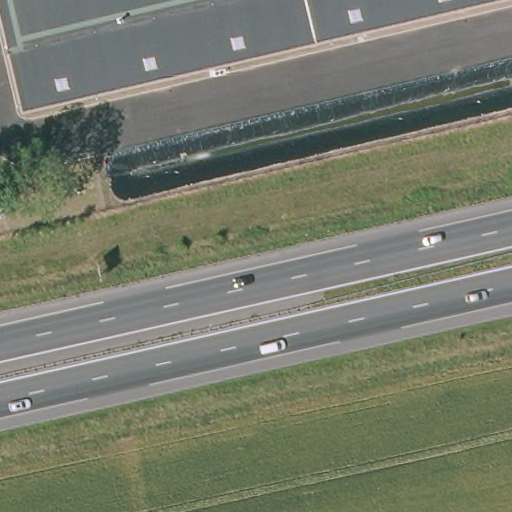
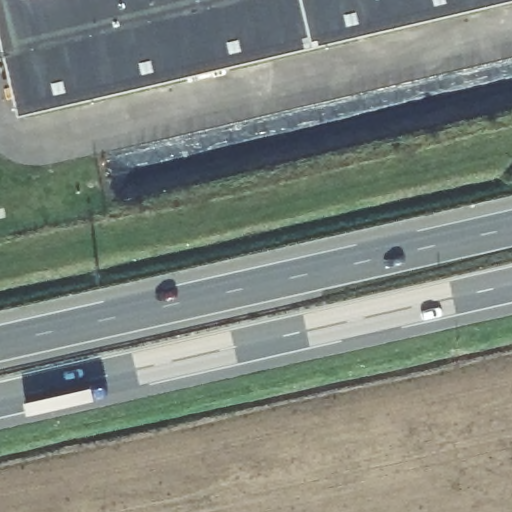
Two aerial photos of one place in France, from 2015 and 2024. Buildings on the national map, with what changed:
unchanged [(0,23),(0,0),(488,0),(20,110),(0,23)]

